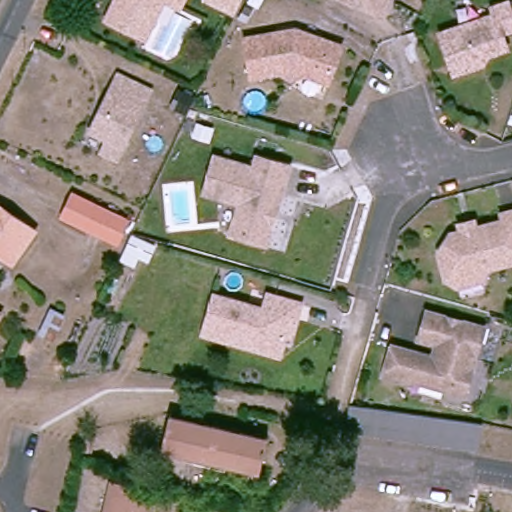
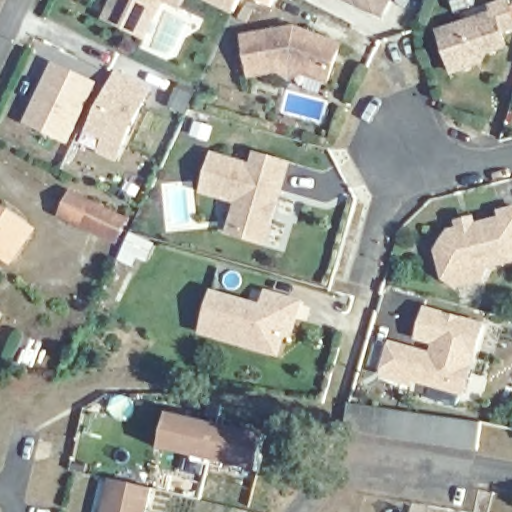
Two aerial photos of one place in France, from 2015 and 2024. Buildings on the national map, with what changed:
unchanged [(144,36),(105,17),(113,0),(160,0),(144,36)]
unchanged [(177,5),(164,0),(180,0),(177,5)]
unchanged [(192,7),(195,0),(230,0),(227,7),(220,20),(192,7)]
unchanged [(384,15),(357,2),(353,0),(391,0),(384,15)]
unchanged [(453,74),(440,33),(460,27),(495,17),(492,7),(507,3),(512,21),(512,31),(501,34),(506,50),(484,57),(487,66),(473,69),(453,74)]
unchanged [(333,80),(297,69),(281,70),(254,74),(250,36),(297,29),(345,44),(333,80)]
new [(51,60),(99,82),(68,145),(20,121),(51,60)]
unchanged [(102,151),(109,138),(91,129),(117,72),(150,87),(123,145),(117,158),(102,151)]
unchanged [(275,214),(269,213),(266,223),(272,226),(266,249),(232,239),(240,210),(204,199),(214,163),(251,174),(255,162),(286,172),(275,214)]
unchanged [(59,219),(75,189),(134,220),(121,249),(59,219)]
unchanged [(15,267),(0,257),(0,207),(38,234),(15,267)]
unchanged [(462,272),(452,275),(445,244),(454,231),(468,228),(465,219),(477,215),(480,225),(508,217),(507,209),(512,208),(512,259),(486,266),(488,276),(464,282),(462,272)]
unchanged [(281,328),(275,346),(203,325),(215,288),(261,302),(265,287),(300,297),(296,314),(291,330),(281,328)]
unchanged [(457,391),(408,378),(405,383),(379,376),(387,345),(428,355),(433,343),(415,337),(421,312),(476,325),(457,391)]
unchanged [(0,321),(0,313),(4,315),(0,321)]
unchanged [(396,412),(483,426),(480,453),(344,435),(348,407),(396,412)]
unchanged [(206,456),(163,446),(171,415),(214,425),(206,456)]
unchanged [(258,471),(206,456),(214,425),(267,439),(258,471)]
unchanged [(153,492),(148,512),(105,512),(114,480),(153,492)]

